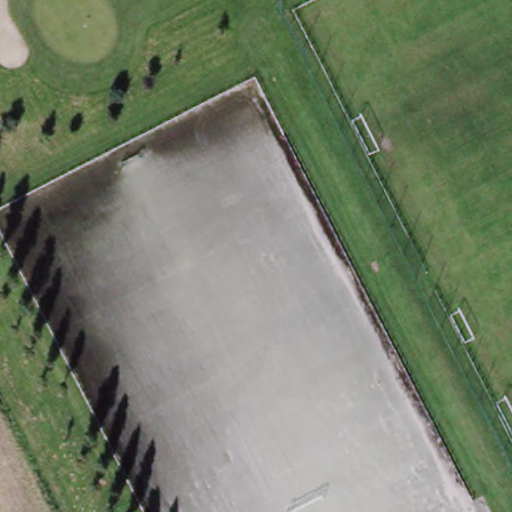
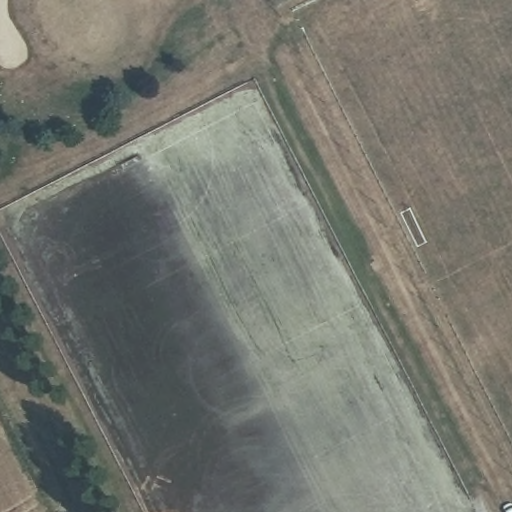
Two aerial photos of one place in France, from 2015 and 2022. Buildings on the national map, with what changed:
[]

